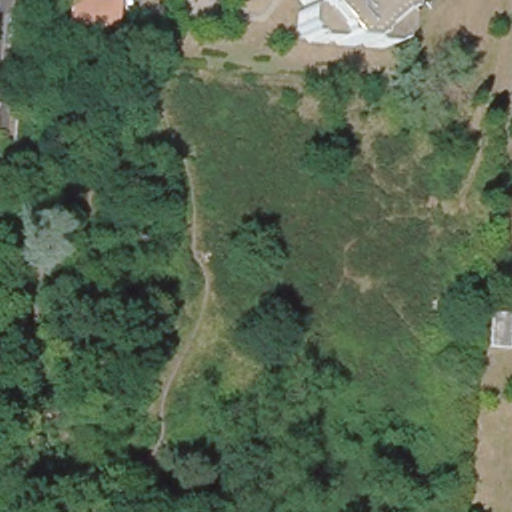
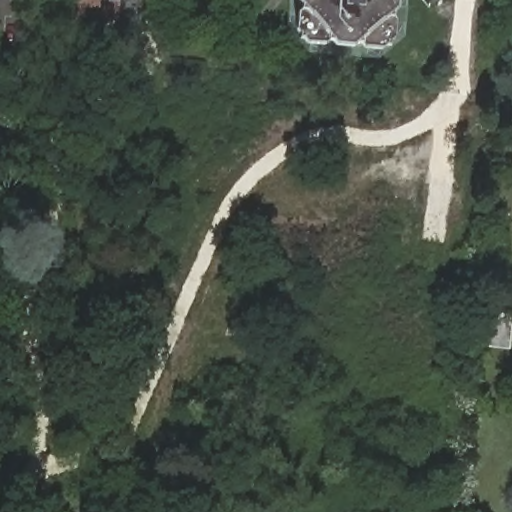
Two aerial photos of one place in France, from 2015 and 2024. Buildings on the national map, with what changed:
unchanged [(309,41),(305,35),(301,35),(302,31),(297,26),(298,10),(303,7),(303,2),(300,0),(399,0),(398,6),(392,12),(397,19),(396,34),(393,38),(393,42),(388,42),(384,47),(366,46),(362,40),(358,40),(354,45),(337,44),(334,37),(331,37),(326,42),(309,41)]
unchanged [(490,312),(511,315),(508,349),(487,347),(490,312)]

